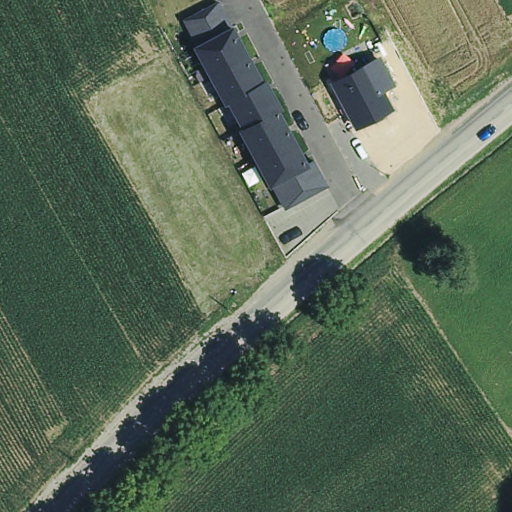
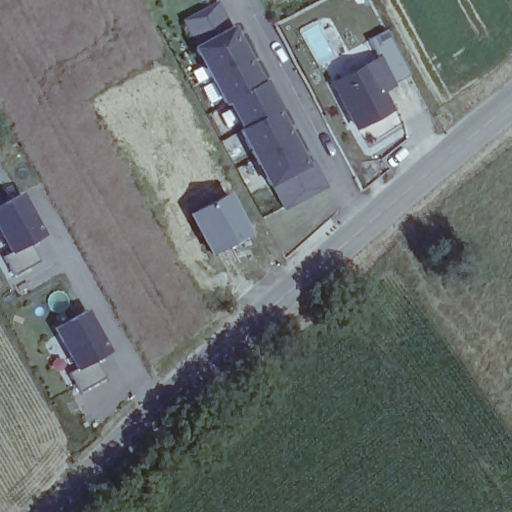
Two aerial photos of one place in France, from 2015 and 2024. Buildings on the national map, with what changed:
unchanged [(285,210),(272,186),(269,189),(237,131),(241,129),(229,104),(224,105),(193,47),(195,46),(182,20),(219,2),(232,26),(264,82),(267,80),(283,109),(280,111),(309,165),(315,161),(329,186),(285,210)]
unchanged [(356,131),(330,83),(380,56),(396,86),(385,92),(394,110),(356,131)]
new [(227,191),(249,234),(209,255),(186,214),(227,191)]
new [(31,243),(40,261),(15,276),(4,257),(10,253),(0,235),(0,205),(24,192),(47,234),(31,243)]
new [(112,351),(96,360),(106,377),(82,392),(70,373),(77,370),(53,327),(87,308),(112,351)]

